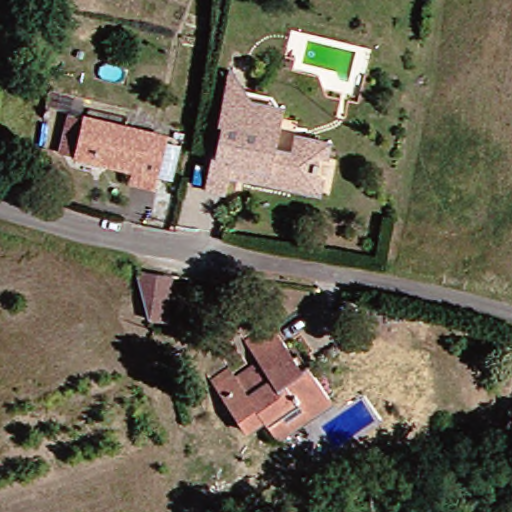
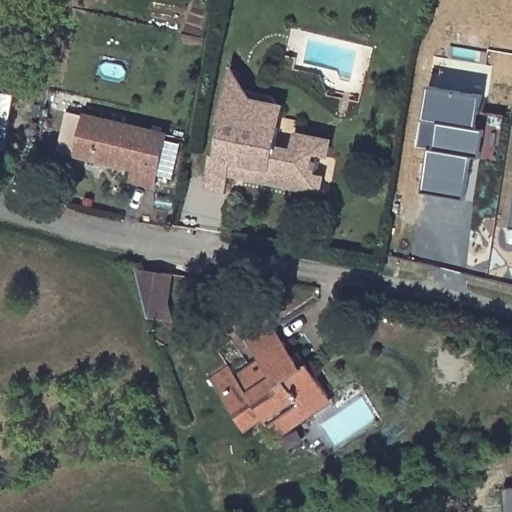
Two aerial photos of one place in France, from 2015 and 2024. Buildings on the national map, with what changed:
unchanged [(282,186),(246,178),(227,174),(223,192),(201,188),(208,155),(211,156),(218,123),(214,122),(220,92),(224,75),(227,76),(240,96),(244,103),(278,110),(274,132),(270,148),(286,151),(287,149),(289,134),(325,141),(322,157),(314,155),(313,162),(315,162),(314,170),(311,169),(310,174),(318,176),(314,192),(282,186)]
new [(477,129),(487,130),(482,161),(473,159),(467,201),(423,194),(429,150),(435,151),(439,123),(424,120),(429,88),(482,96),(477,129)]
unchanged [(130,183),(104,177),(108,165),(98,163),(34,146),(43,108),(61,112),(61,111),(140,132),(139,139),(154,143),(146,175),(139,173),(138,179),(132,177),(130,183)]
unchanged [(166,274),(160,302),(166,321),(144,317),(130,269),(166,274)]
unchanged [(302,417),(272,437),(264,425),(258,417),(239,429),(208,383),(227,370),(234,381),(248,372),(257,366),(242,343),(268,325),(296,368),(302,364),(323,396),(326,400),(302,417)]
new [(506,512),(504,491),(512,490),(512,512),(506,512)]

